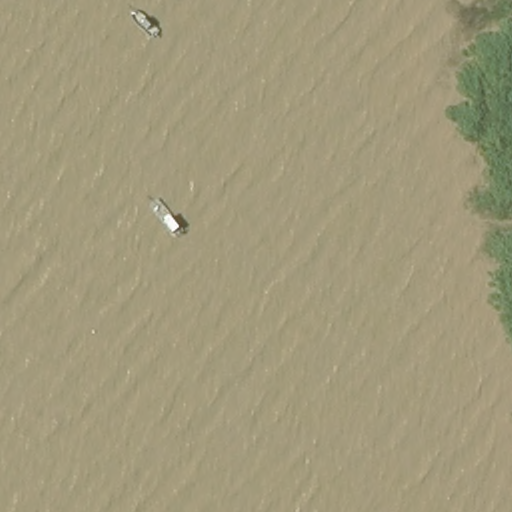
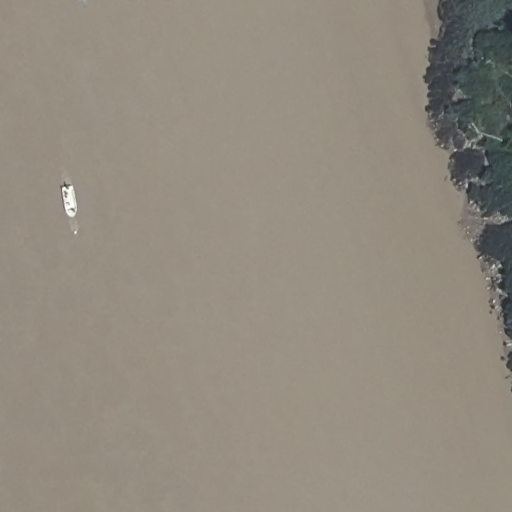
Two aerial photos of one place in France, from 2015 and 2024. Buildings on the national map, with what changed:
[]

